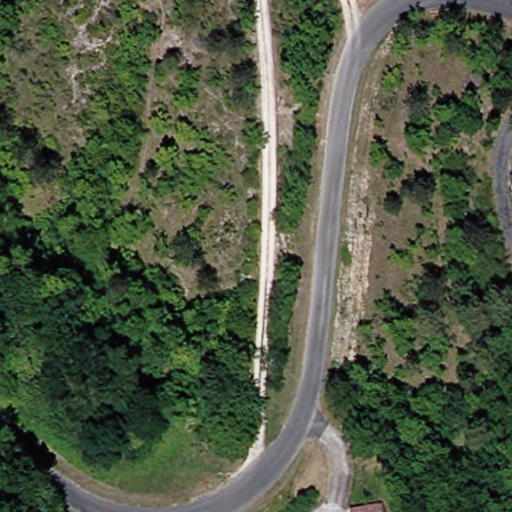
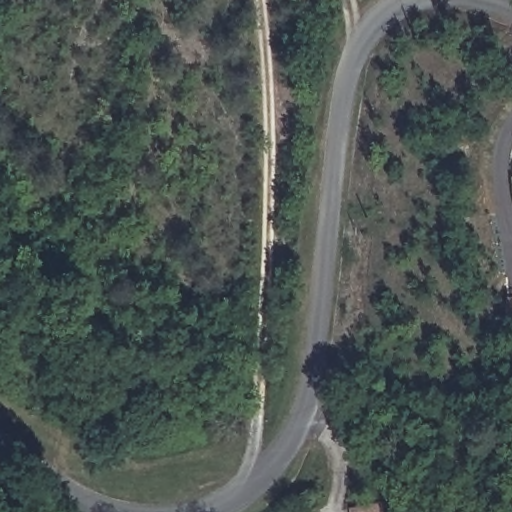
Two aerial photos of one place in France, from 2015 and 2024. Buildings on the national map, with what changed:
unchanged [(512,271),(512,292),(499,289),(503,270),(512,271)]
unchanged [(387,512),(355,512),(354,507),(385,501),(387,512)]

